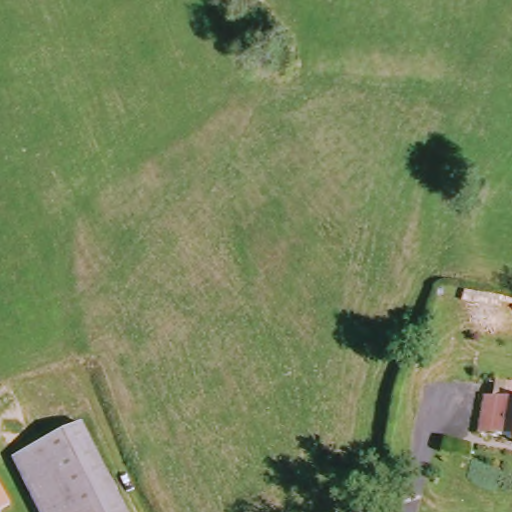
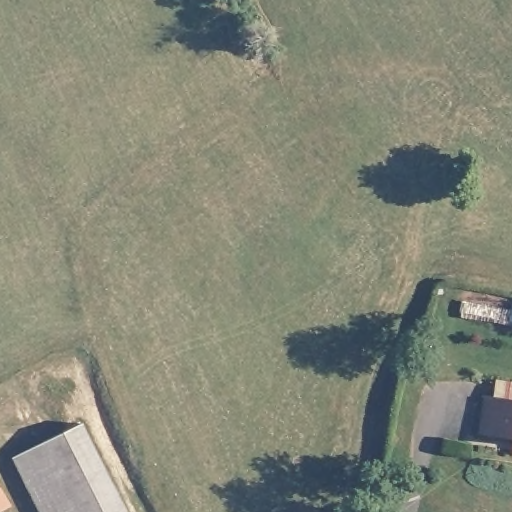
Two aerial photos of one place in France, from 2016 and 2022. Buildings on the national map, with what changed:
unchanged [(492,436),(503,375),(512,376),(512,442),(492,436)]
unchanged [(131,512),(47,512),(23,465),(90,430),(131,512)]
unchanged [(0,504),(3,507),(0,509),(0,504)]

